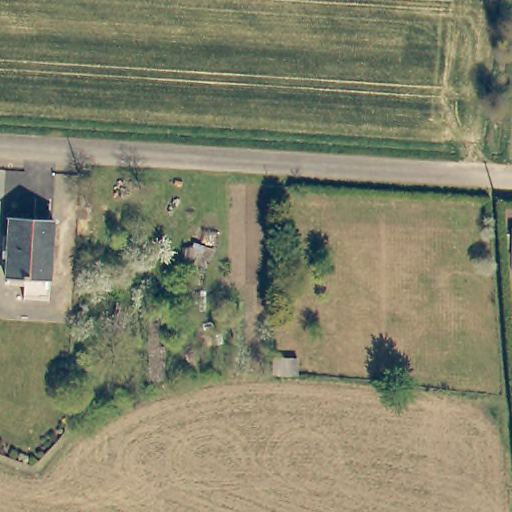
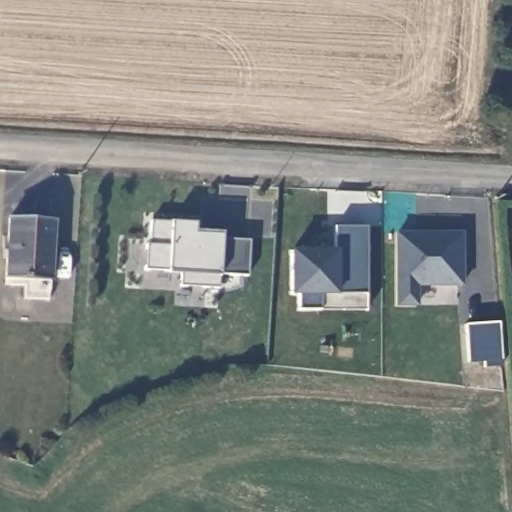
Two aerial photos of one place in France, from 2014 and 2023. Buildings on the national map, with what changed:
new [(246,276),(220,275),(219,288),(180,286),(181,273),(169,272),(144,271),(146,245),(149,245),(151,221),(167,223),(194,223),(192,233),(222,235),(220,241),(247,241),(246,276)]
unchanged [(52,224),(48,286),(5,284),(10,222),(52,224)]
new [(325,311),(302,311),(303,295),(296,295),(296,253),(339,253),(340,228),(372,229),(371,296),(371,312),(325,311)]
new [(393,306),(395,233),(463,233),(463,287),(417,288),(417,307),(393,306)]
new [(499,362),(466,364),(464,325),(496,324),(499,362)]

